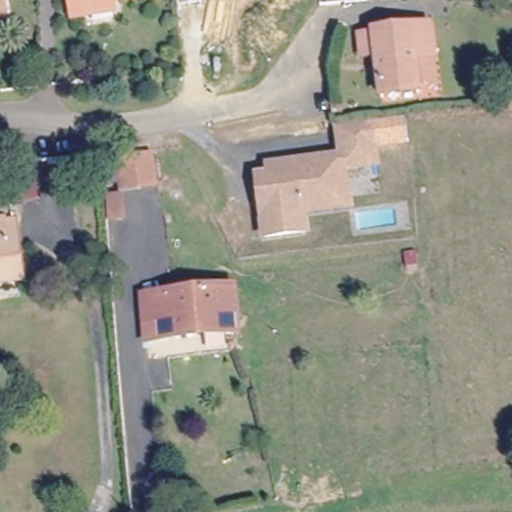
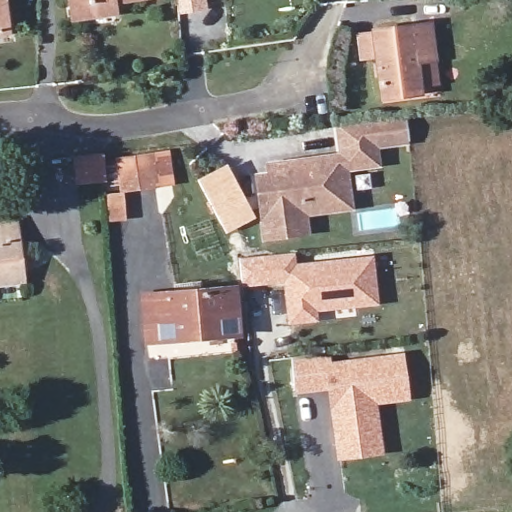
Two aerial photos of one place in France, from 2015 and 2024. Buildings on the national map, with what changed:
unchanged [(68,7),(68,0),(154,0),(155,4),(120,9),(119,4),(110,5),(113,22),(89,25),(72,27),(68,7)]
new [(178,9),(177,0),(200,0),(200,5),(178,9)]
unchanged [(8,5),(12,31),(0,33),(0,6),(8,5)]
unchanged [(379,104),(379,99),(374,60),(362,61),(359,34),(370,32),(426,26),(431,60),(434,87),(416,89),(417,95),(417,100),(379,104)]
unchanged [(302,221),(304,241),(263,246),(260,221),(255,186),(257,185),(267,184),(266,175),(287,172),(338,165),(334,135),(369,130),(375,172),(343,177),(346,205),(348,215),(302,221)]
unchanged [(105,179),(77,182),(75,156),(103,152),(105,179)]
unchanged [(153,152),(156,175),(121,180),(118,157),(153,152)]
new [(224,234),(197,180),(226,163),(254,218),(224,234)]
unchanged [(0,286),(0,222),(1,222),(2,228),(10,227),(12,246),(17,284),(0,286)]
new [(317,312),(317,322),(287,324),(283,282),(266,283),(263,256),(294,253),(295,263),(373,256),(378,305),(317,312)]
unchanged [(144,297),(224,291),(234,290),(238,334),(228,335),(148,342),(144,297)]
new [(337,457),(336,447),(331,405),(329,392),(328,387),(293,392),(291,358),(326,353),(328,366),(400,356),(405,396),(371,401),(374,422),(378,452),(337,457)]

